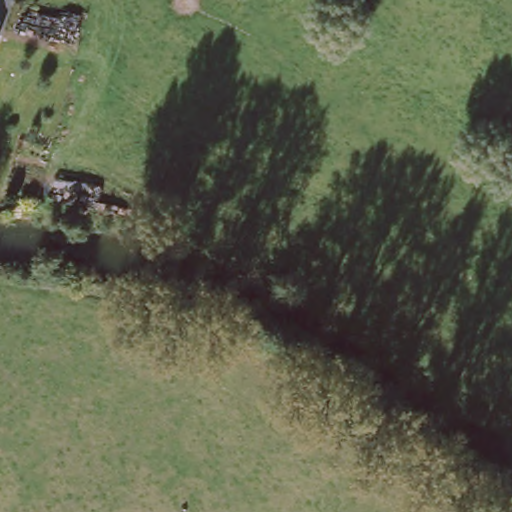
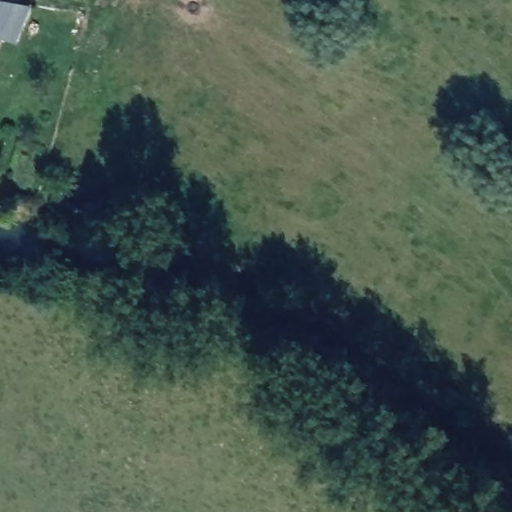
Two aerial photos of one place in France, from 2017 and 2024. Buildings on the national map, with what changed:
new [(2,37),(0,36),(0,0),(20,0),(32,3),(19,42),(2,37)]
unchanged [(0,40),(0,36),(2,37),(0,40)]

